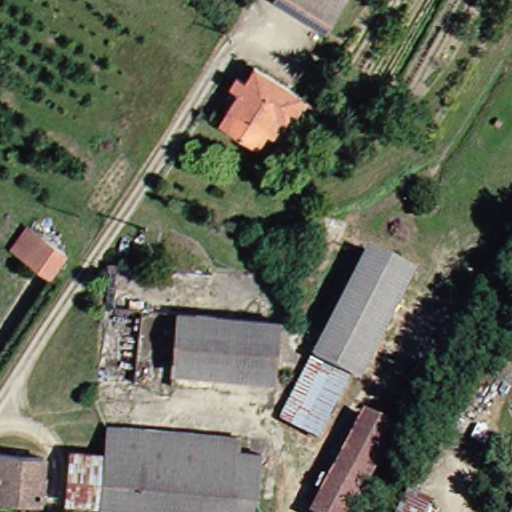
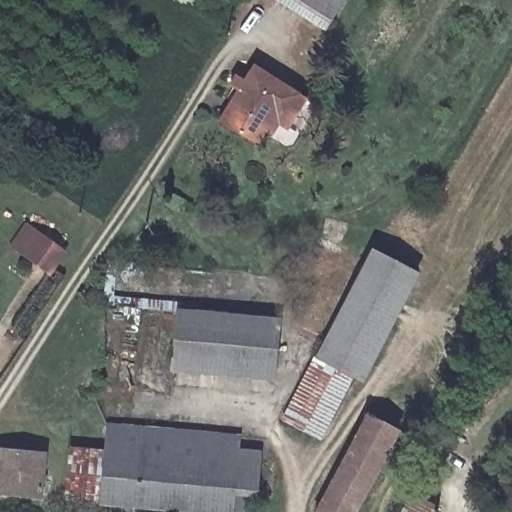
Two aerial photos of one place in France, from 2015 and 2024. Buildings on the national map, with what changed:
unchanged [(327,25),(286,0),(342,0),(327,25)]
unchanged [(301,91),(282,121),(273,115),(265,122),(259,119),(248,135),(216,109),(232,84),(223,77),(231,65),(241,72),(249,58),(301,91)]
unchanged [(60,277),(19,250),(34,228),(74,255),(60,277)]
unchanged [(426,275),(371,383),(359,377),(323,445),(286,421),(321,359),(380,251),(426,275)]
unchanged [(285,321),(277,377),(180,367),(184,310),(285,321)]
unchanged [(320,512),(372,415),(401,430),(361,512),(320,512)]
unchanged [(162,512),(110,507),(114,455),(116,430),(246,441),(245,452),(254,453),(267,455),(259,511),(259,512),(162,512)]
unchanged [(46,496),(0,490),(0,463),(2,447),(51,453),(46,496)]
unchanged [(75,502),(77,452),(114,455),(110,507),(75,502)]
unchanged [(409,512),(417,494),(445,507),(442,512),(409,512)]

